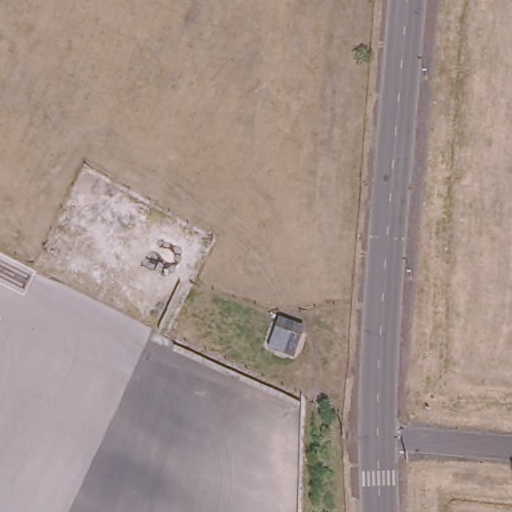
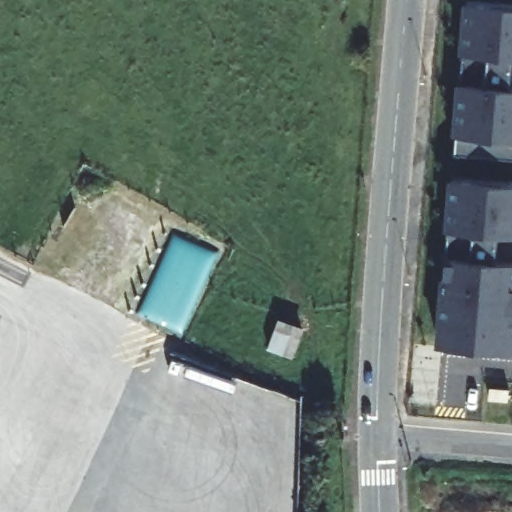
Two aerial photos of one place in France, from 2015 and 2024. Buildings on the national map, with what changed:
new [(468,1),(512,4),(512,157),(455,152),(468,1)]
new [(453,178),(512,182),(512,351),(439,345),(453,178)]

